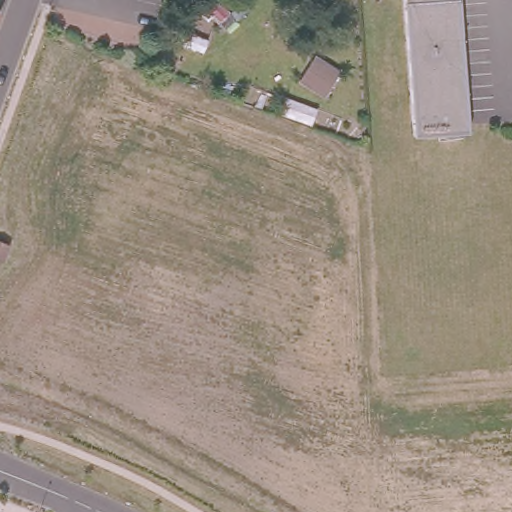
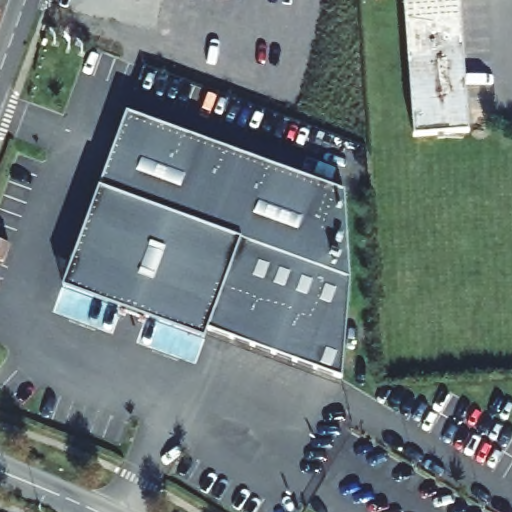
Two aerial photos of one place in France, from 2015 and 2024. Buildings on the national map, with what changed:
unchanged [(468,147),(414,151),(403,0),(458,0),(468,147)]
unchanged [(0,13),(0,5),(3,6),(0,13)]
new [(127,112),(345,192),(350,279),(351,382),(208,330),(205,339),(63,287),(127,112)]

